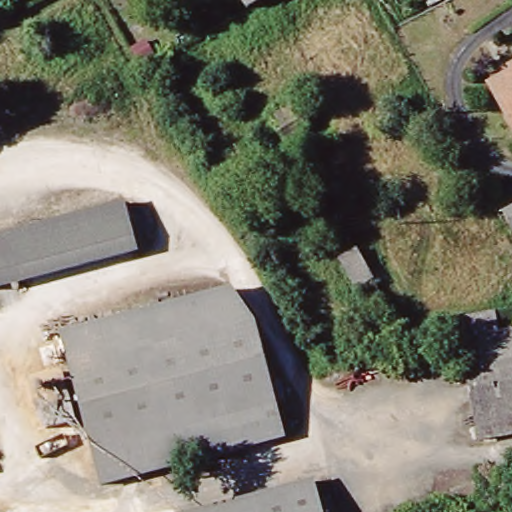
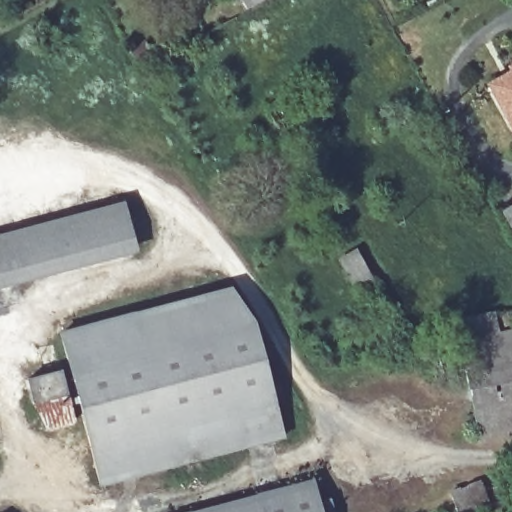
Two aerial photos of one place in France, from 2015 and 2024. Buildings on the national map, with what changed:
unchanged [(246,9),(241,0),(261,0),(246,9)]
unchanged [(150,66),(143,70),(140,64),(146,60),(150,66)]
unchanged [(489,85),(510,74),(508,69),(512,67),(512,127),(489,85)]
unchanged [(308,127),(284,141),(268,112),(292,99),(308,127)]
unchanged [(126,252),(0,286),(0,274),(4,273),(0,260),(0,233),(113,204),(126,252)]
unchanged [(502,213),(512,207),(512,230),(502,213)]
unchanged [(370,280),(356,288),(340,260),(354,251),(370,280)]
unchanged [(277,432),(96,480),(55,329),(226,284),(248,318),(277,432)]
unchanged [(473,440),(454,341),(451,323),(488,316),(491,334),(512,330),(512,432),(473,440)]
unchanged [(68,417),(41,424),(28,400),(21,375),(55,367),(68,417)]
unchanged [(319,499),(330,496),(333,508),(322,511),(322,512),(177,512),(313,476),(319,499)]
unchanged [(488,501),(458,512),(454,501),(451,492),(481,481),(488,501)]

